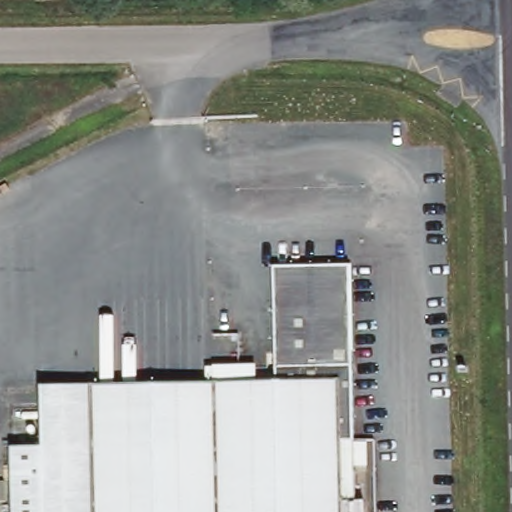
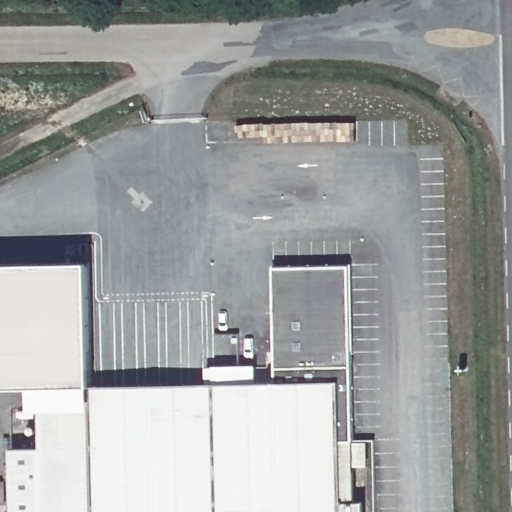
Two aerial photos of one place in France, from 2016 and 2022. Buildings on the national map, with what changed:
new [(92,383),(39,384),(39,408),(32,408),(31,386),(0,387),(0,264),(90,262),(92,383)]
unchanged [(10,512),(9,444),(40,443),(39,384),(252,379),(274,379),(271,263),(348,263),(352,439),(339,439),(341,512),(10,512)]

